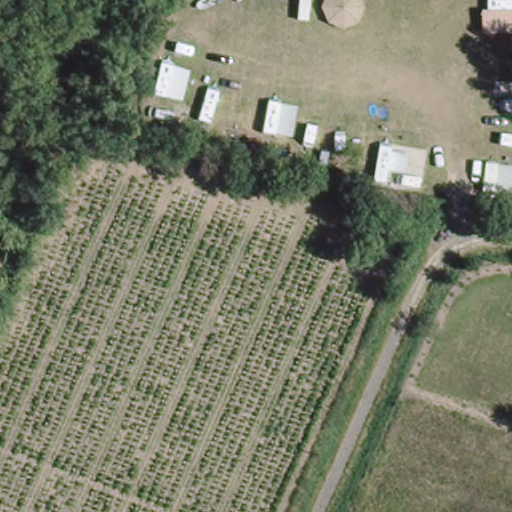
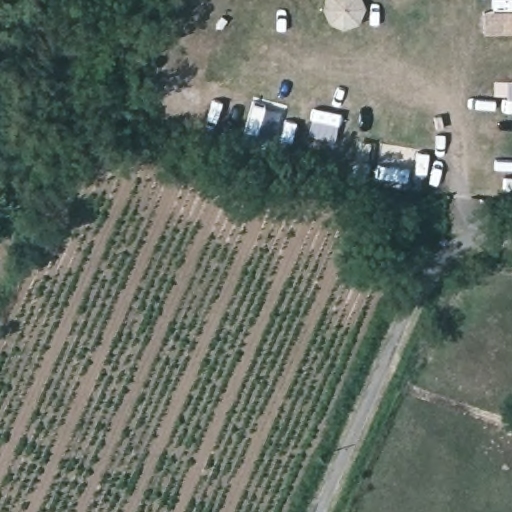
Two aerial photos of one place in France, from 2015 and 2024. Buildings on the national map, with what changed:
unchanged [(512,37),(479,38),(480,12),(512,10),(512,37)]

